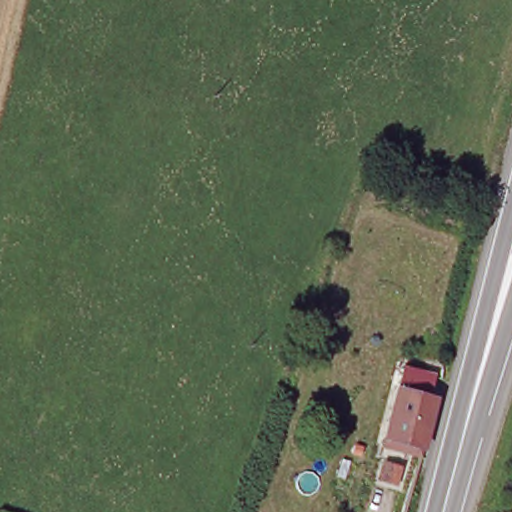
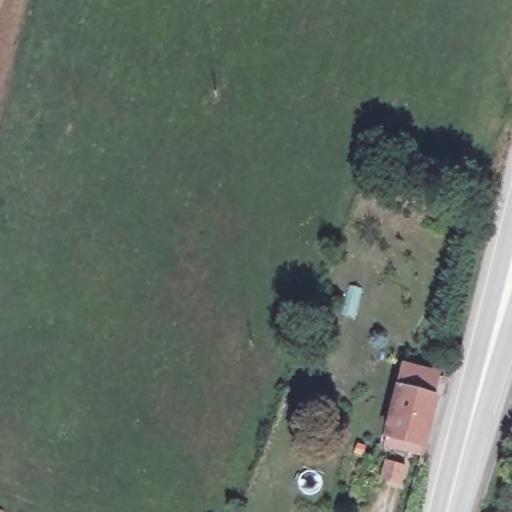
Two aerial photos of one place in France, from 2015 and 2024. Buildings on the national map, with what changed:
unchanged [(419,449),(384,443),(403,369),(439,377),(419,449)]

